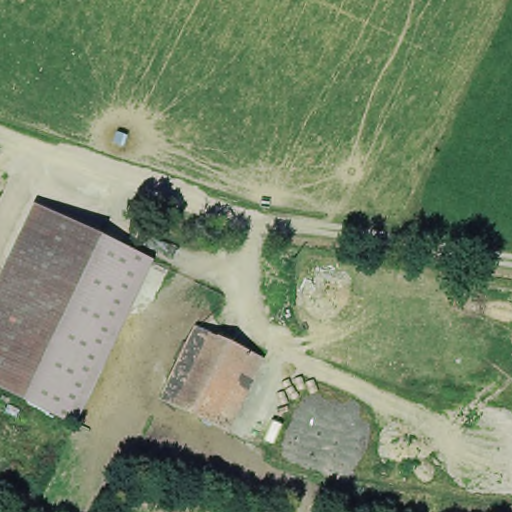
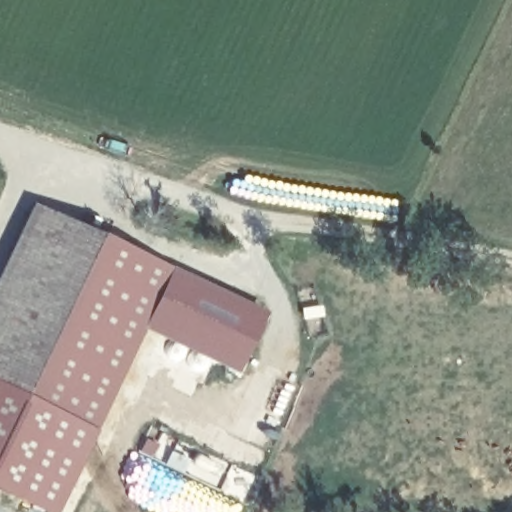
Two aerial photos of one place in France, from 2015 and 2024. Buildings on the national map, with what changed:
new [(145,263),(95,239),(41,214),(0,301),(0,272),(33,203),(173,267),(267,312),(250,349),(156,305),(144,327),(95,435),(71,428),(145,263)]
unchanged [(145,263),(71,428),(19,403),(0,394),(0,301),(41,214),(95,239),(145,263)]
new [(156,305),(250,349),(241,372),(144,327),(156,305)]
new [(61,512),(43,512),(0,491),(0,394),(19,403),(71,428),(95,435),(61,512)]

